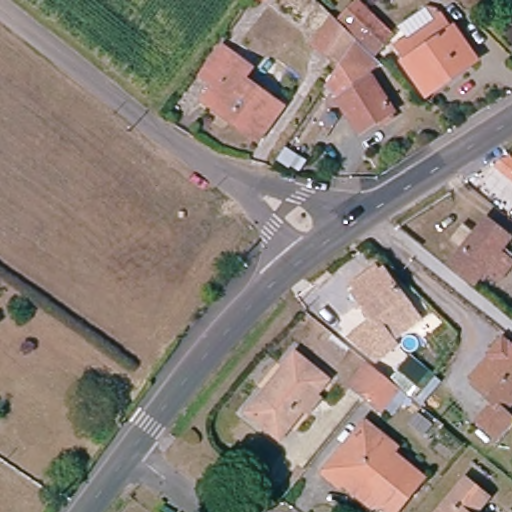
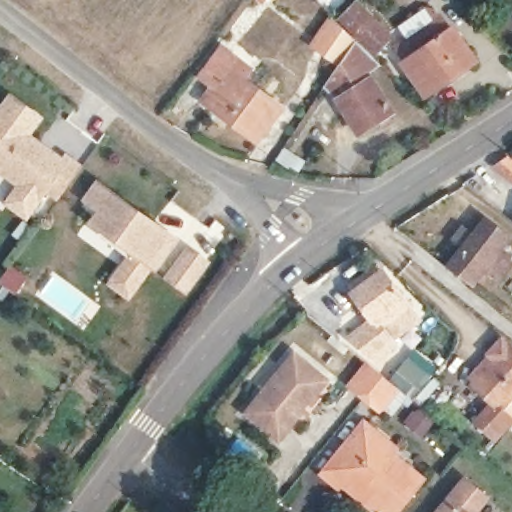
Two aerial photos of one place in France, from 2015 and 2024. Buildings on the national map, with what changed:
unchanged [(364,10),(391,39),(373,56),(346,27),(364,10)]
unchanged [(423,92),(402,61),(404,59),(396,46),(441,16),(449,29),(451,29),(471,60),(423,92)]
unchanged [(309,47),(330,20),(351,39),(333,67),(309,47)]
unchanged [(204,89),(193,81),(214,52),(244,75),(237,84),(274,111),(250,141),(207,109),(195,100),(204,89)]
unchanged [(351,76),(340,67),(354,52),(365,61),(351,76)]
unchanged [(379,135),(374,127),(358,140),(334,106),(348,96),(342,89),(362,74),(391,115),(388,118),(393,125),(379,135)]
new [(0,169),(0,116),(13,99),(40,119),(28,136),(65,163),(68,159),(82,169),(61,198),(48,189),(36,205),(28,216),(10,204),(19,192),(24,186),(0,169)]
unchanged [(509,152),(512,154),(512,178),(493,162),(509,152)]
new [(137,253),(95,222),(104,210),(89,200),(101,183),(155,223),(179,240),(176,245),(159,268),(154,265),(140,282),(131,295),(115,283),(124,270),(137,253)]
unchanged [(508,237),(497,251),(508,260),(496,275),(484,266),(480,272),(484,276),(481,280),(476,276),(470,283),(444,262),(457,246),(471,228),(481,215),(508,237)]
new [(192,250),(208,261),(189,289),(172,277),(192,250)]
unchanged [(397,295),(392,299),(398,307),(376,322),(388,341),(366,356),(340,336),(363,321),(343,288),(376,266),(397,295)]
unchanged [(508,411),(512,415),(512,417),(496,435),(477,417),(493,399),(474,382),(468,376),(501,340),(507,345),(512,350),(512,407),(508,411)]
unchanged [(325,382),(275,443),(240,415),(290,353),(325,382)]
unchanged [(377,403),(362,391),(348,380),(362,362),(376,373),(392,387),(377,403)]
unchanged [(364,498),(342,481),(339,485),(324,475),(366,423),(395,447),(389,454),(418,477),(391,511),(377,500),(373,505),(364,498)]
unchanged [(489,497),(477,512),(433,512),(463,476),(489,497)]

